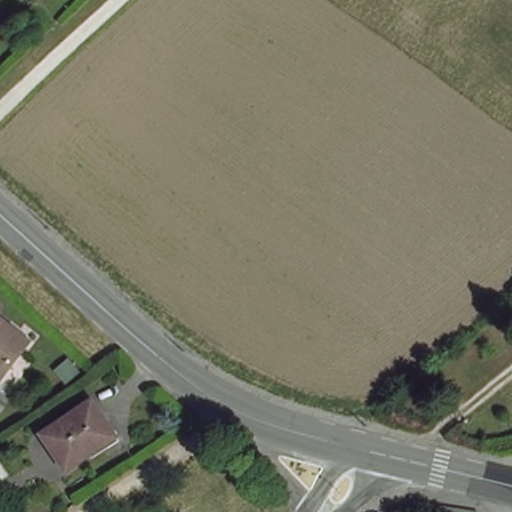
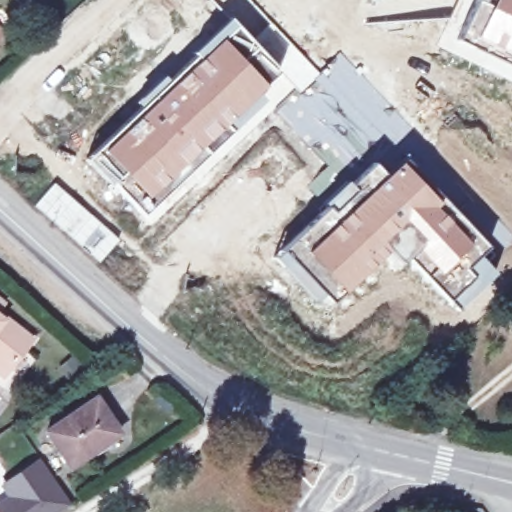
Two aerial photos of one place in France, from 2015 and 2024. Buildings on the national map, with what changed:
new [(512,0),(512,65),(454,37),(470,0),(512,0)]
new [(164,77),(166,79),(229,16),(277,67),(294,46),(320,74),(301,92),(280,71),(259,93),(264,98),(142,216),(85,159),(140,104),(136,100),(164,77)]
new [(325,204),(338,216),(385,172),(404,156),(489,246),(480,253),(495,271),(457,308),(405,259),(400,265),(387,252),(332,301),(307,277),(302,282),(274,256),(325,204)]
new [(347,179),(350,182),(373,160),(385,172),(338,216),(325,204),(347,179)]
new [(99,263),(80,246),(32,205),(53,181),(100,222),(120,239),(99,263)]
unchanged [(0,374),(0,316),(29,339),(0,374)]
unchanged [(43,438),(95,401),(117,435),(67,470),(43,438)]
new [(2,488),(33,466),(62,507),(56,512),(0,512),(0,509),(11,501),(2,488)]

